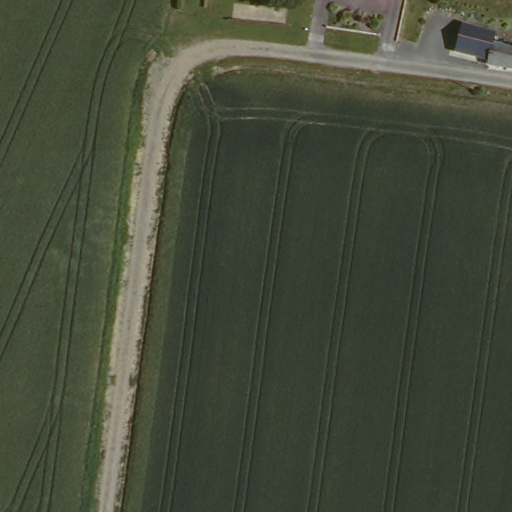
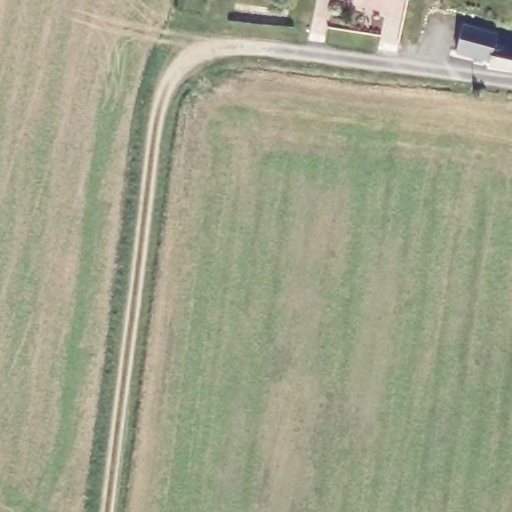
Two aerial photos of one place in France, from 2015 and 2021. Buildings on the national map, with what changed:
unchanged [(405,2),(405,4),(400,3),(387,0),(405,0),(405,2)]
unchanged [(491,68),(492,64),(476,62),(458,59),(462,32),(496,37),(495,46),(512,48),(512,72),(491,68)]

